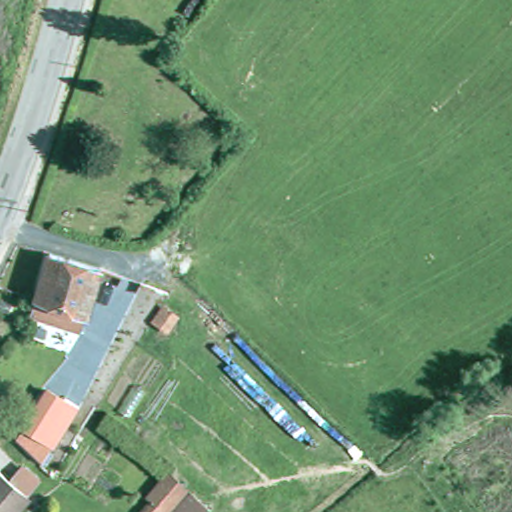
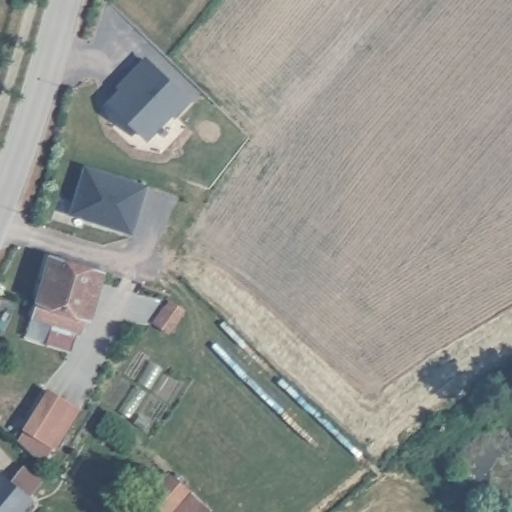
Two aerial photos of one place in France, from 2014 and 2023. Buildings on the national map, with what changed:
new [(189,98),(171,118),(168,115),(144,139),(104,101),(113,90),(110,87),(143,55),(189,98)]
new [(131,233),(68,215),(81,165),(146,183),(131,233)]
unchanged [(29,311),(29,309),(44,264),(95,279),(79,326),(29,311)]
unchanged [(79,407),(43,465),(13,436),(43,386),(79,407)]
unchanged [(22,493),(5,512),(0,512),(0,475),(22,493)]
unchanged [(165,512),(145,512),(153,502),(148,499),(169,476),(184,489),(165,512)]
unchanged [(204,512),(177,512),(191,495),(207,509),(204,512)]

